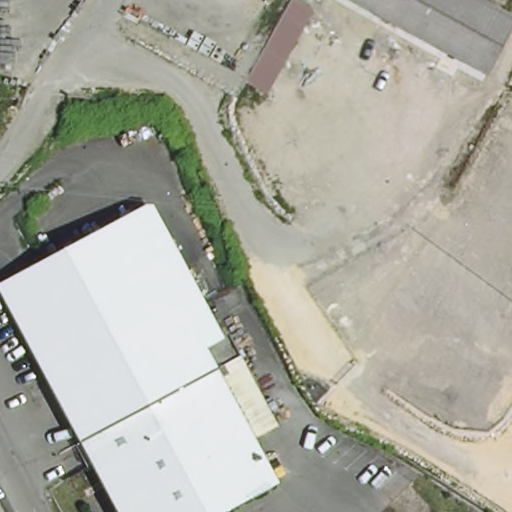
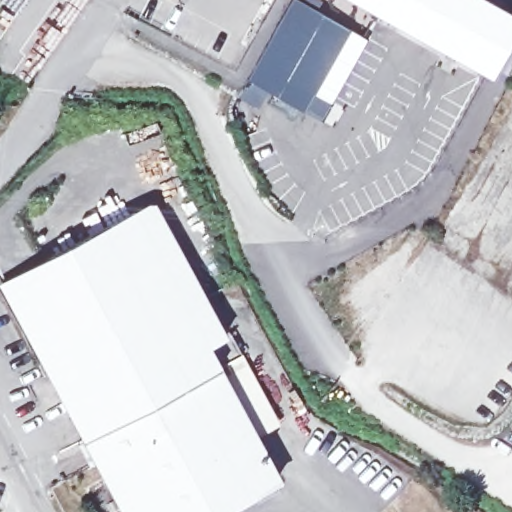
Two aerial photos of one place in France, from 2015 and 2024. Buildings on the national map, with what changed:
new [(271,31),(291,0),(304,0),(352,29),(314,94),(330,104),(321,120),(267,91),(256,108),(237,96),(246,79),(271,31)]
unchanged [(494,65),(384,0),(511,0),(512,0),(512,33),(494,65)]
new [(352,29),(367,38),(330,104),(314,94),(352,29)]
unchanged [(137,223),(170,289),(192,278),(225,345),(232,344),(277,433),(250,447),(272,493),(232,512),(113,512),(2,290),(137,223)]

